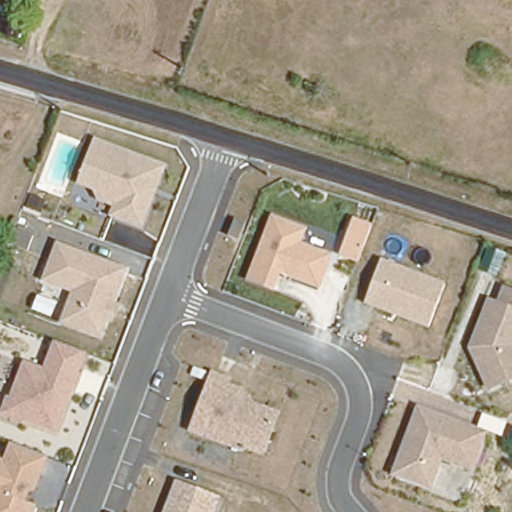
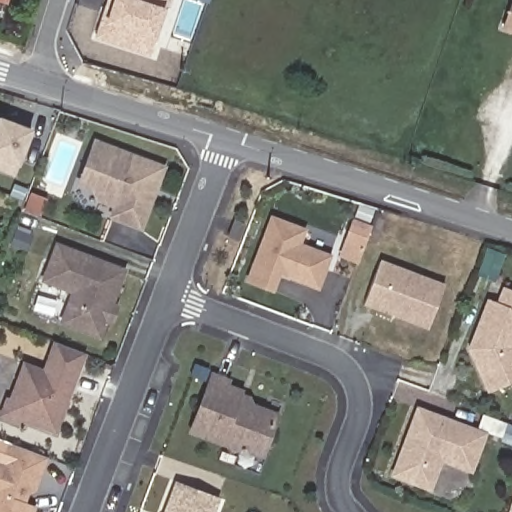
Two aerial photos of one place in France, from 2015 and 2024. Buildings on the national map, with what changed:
unchanged [(2,1),(0,1),(0,0),(3,0),(2,1)]
new [(165,7),(155,38),(149,56),(93,38),(106,0),(167,0),(165,7)]
new [(510,0),(512,0),(512,32),(501,28),(510,0)]
new [(31,129),(18,164),(14,174),(0,169),(0,117),(31,129)]
unchanged [(107,215),(110,206),(95,201),(96,190),(78,185),(97,138),(169,165),(145,227),(107,215)]
unchanged [(304,228),(300,244),(329,254),(317,288),(254,265),(271,217),(304,228)]
new [(353,220),(372,227),(363,248),(358,262),(340,255),(345,241),(353,220)]
unchanged [(60,324),(70,293),(40,283),(54,241),(129,267),(116,303),(121,305),(113,324),(108,322),(102,339),(60,324)]
unchanged [(429,329),(364,305),(382,260),(446,284),(429,329)]
unchanged [(468,351),(487,300),(496,303),(501,286),(512,291),(512,382),(490,392),(468,351)]
unchanged [(55,433),(16,417),(20,404),(8,399),(20,361),(41,369),(52,342),(85,354),(55,433)]
unchanged [(229,380),(228,384),(242,390),(241,394),(251,398),(250,404),(278,414),(262,456),(241,450),(239,453),(187,432),(210,372),(229,380)]
unchanged [(472,474),(441,465),(431,493),(390,478),(417,408),(487,433),(472,474)]
unchanged [(0,512),(0,439),(10,441),(49,456),(39,492),(31,490),(29,501),(38,506),(36,512),(0,512)]
unchanged [(164,512),(176,480),(222,496),(216,512),(164,512)]
new [(512,512),(508,512),(512,501),(512,512)]

